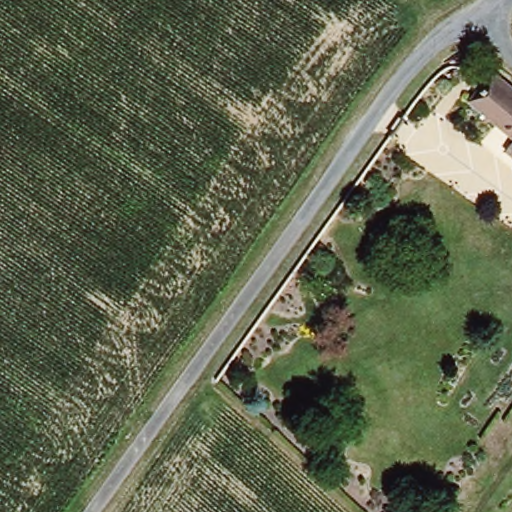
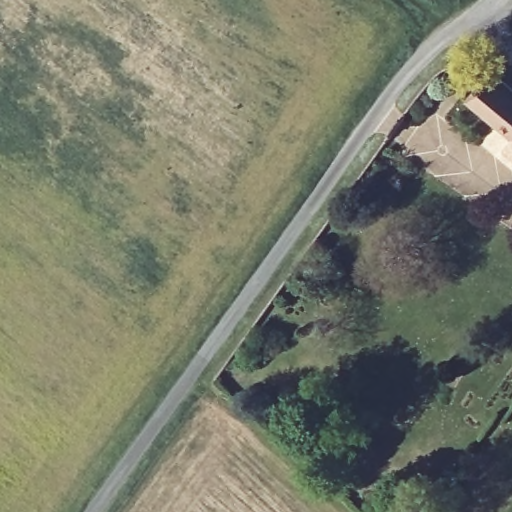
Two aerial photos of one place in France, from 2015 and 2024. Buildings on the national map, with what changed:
unchanged [(469,101),(495,72),(512,87),(512,139),(469,101)]
unchanged [(508,156),(512,151),(512,158),(508,156)]

